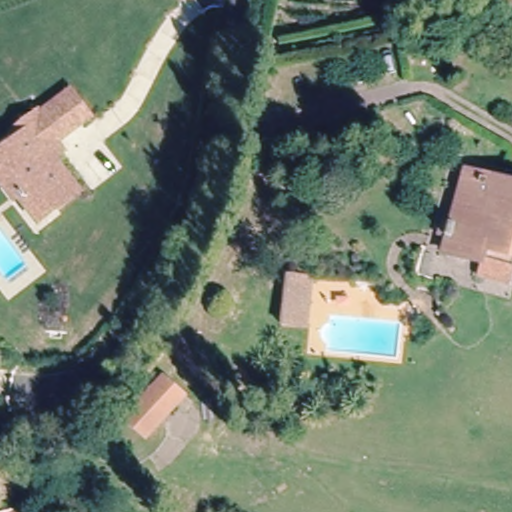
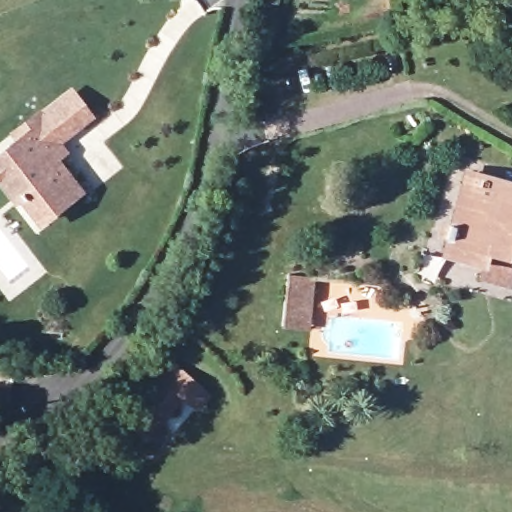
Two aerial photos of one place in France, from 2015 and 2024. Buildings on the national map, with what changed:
unchanged [(39,216),(26,198),(29,196),(17,180),(10,186),(0,173),(0,164),(31,139),(28,134),(78,96),(96,120),(63,146),(71,156),(60,164),(83,193),(61,210),(44,222),(39,216)]
unchanged [(478,258),(443,248),(466,168),(512,181),(512,255),(482,246),(478,258)]
unchanged [(314,278),(309,333),(281,330),(286,274),(314,278)]
unchanged [(183,398),(144,440),(133,429),(144,418),(133,409),(163,379),(183,398)]
unchanged [(0,512),(0,497),(7,495),(11,512),(0,512)]

